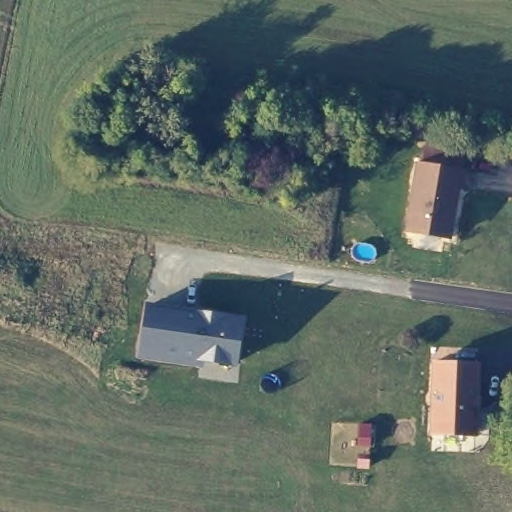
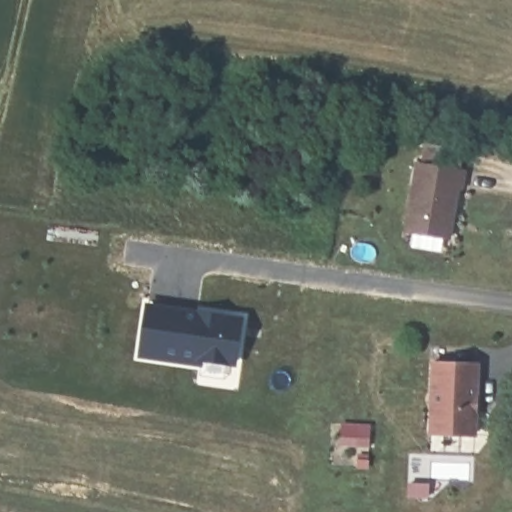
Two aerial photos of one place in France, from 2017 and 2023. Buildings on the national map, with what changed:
unchanged [(406,230),(417,161),(423,162),(426,144),(466,149),(452,239),(406,230)]
unchanged [(237,368),(137,356),(147,302),(244,316),(237,368)]
unchanged [(490,363),(486,437),(427,435),(432,360),(490,363)]

